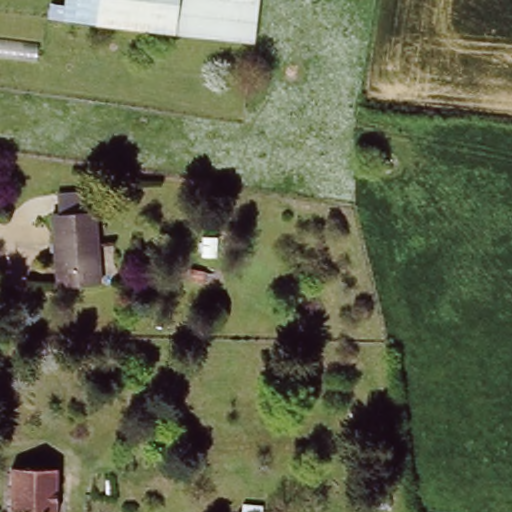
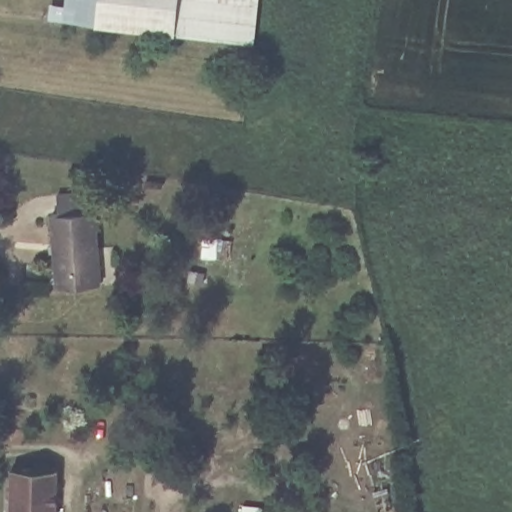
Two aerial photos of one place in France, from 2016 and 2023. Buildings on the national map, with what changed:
unchanged [(265,35),(159,32),(61,30),(62,16),(74,16),(75,0),(265,0),(265,35)]
unchanged [(97,216),(101,287),(62,290),(58,218),(97,216)]
unchanged [(48,512),(7,512),(6,470),(47,469),(48,512)]

